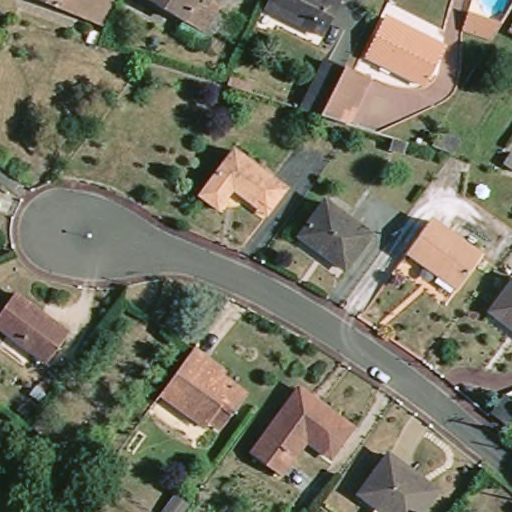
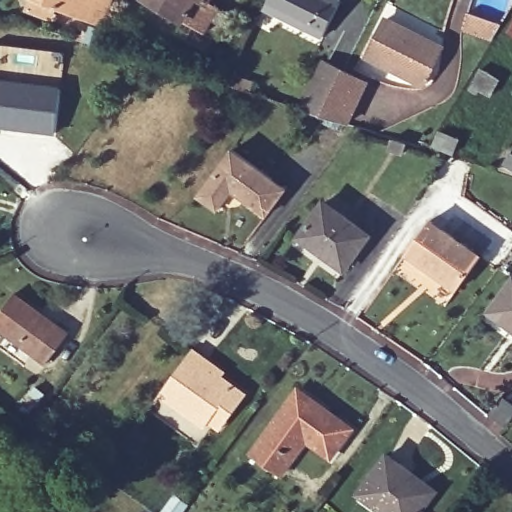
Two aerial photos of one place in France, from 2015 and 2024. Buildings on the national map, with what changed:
unchanged [(112,0),(102,25),(40,0),(112,0)]
unchanged [(200,29),(151,0),(212,0),(215,2),(200,29)]
unchanged [(334,0),(336,1),(318,37),(260,7),(264,0),(334,0)]
new [(467,14),(501,26),(491,41),(461,31),(467,14)]
unchanged [(418,86),(360,58),(380,15),(442,45),(418,86)]
unchanged [(512,25),(512,35),(507,32),(512,25)]
unchanged [(365,82),(343,125),(316,117),(302,111),(297,110),(322,60),(326,63),(340,70),(365,82)]
new [(57,90),(54,134),(0,129),(0,85),(57,90)]
unchanged [(243,203),(224,188),(210,206),(190,191),(225,146),(278,187),(263,206),(257,214),(243,203)]
unchanged [(335,270),(290,235),(316,202),(361,236),(335,270)]
unchanged [(449,286),(400,252),(423,218),(473,252),(449,286)]
unchanged [(512,334),(484,313),(510,280),(512,281),(512,334)]
unchanged [(0,332),(0,301),(7,291),(60,331),(38,361),(0,332)]
unchanged [(204,419),(198,426),(152,393),(186,346),(202,358),(198,363),(240,394),(225,413),(215,427),(204,419)]
unchanged [(244,450),(292,386),(344,425),(323,453),(294,431),(281,450),(287,454),(274,472),(244,450)]
unchanged [(512,396),(512,421),(509,425),(492,412),(506,392),(512,396)]
unchanged [(384,453),(436,491),(421,512),(385,512),(357,491),(384,453)]

